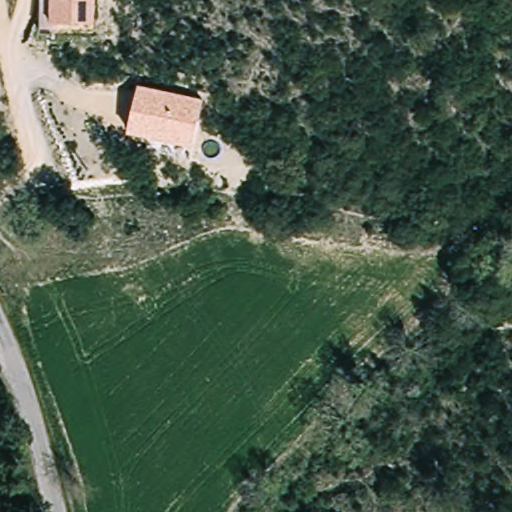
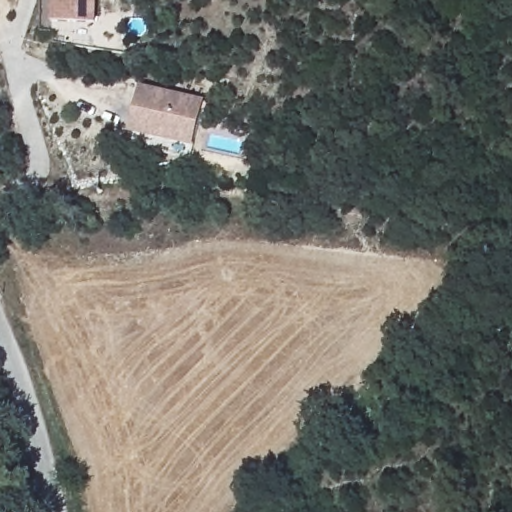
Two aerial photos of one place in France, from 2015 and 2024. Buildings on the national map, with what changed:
unchanged [(44,0),(97,0),(97,25),(56,23),(44,28),(44,0)]
unchanged [(141,85),(204,103),(192,148),(130,134),(141,85)]

